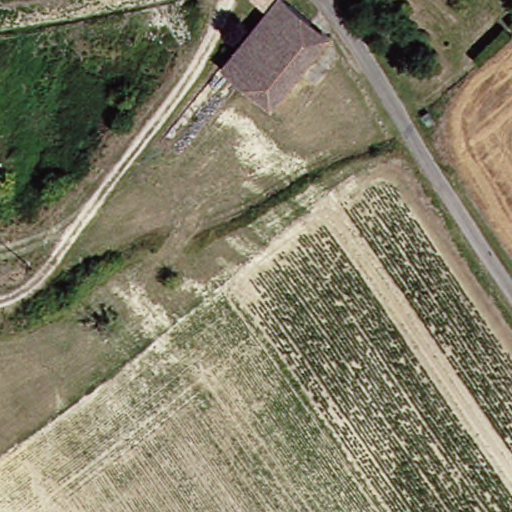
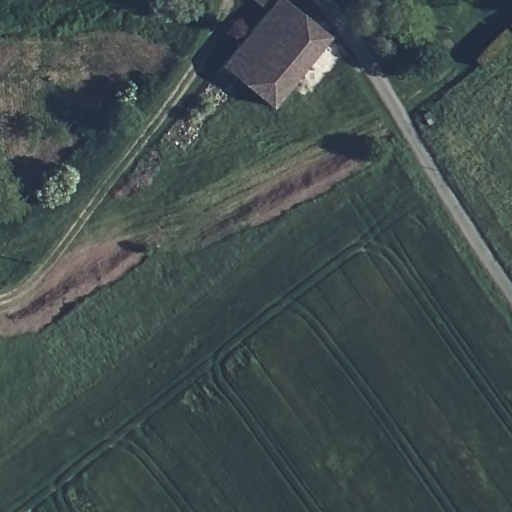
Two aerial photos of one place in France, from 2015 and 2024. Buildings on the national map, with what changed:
unchanged [(249,0),(277,0),(318,29),(288,79),(271,107),(198,63),(249,0)]

